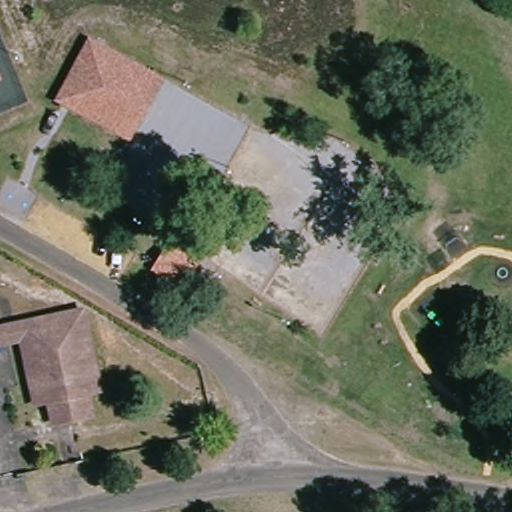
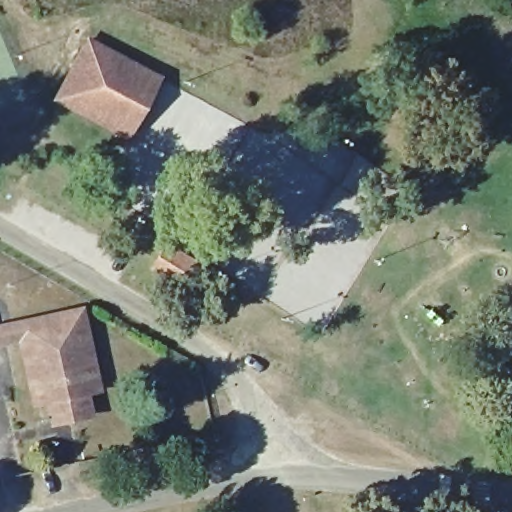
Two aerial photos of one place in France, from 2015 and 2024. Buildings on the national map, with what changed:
unchanged [(51,97),(86,36),(160,76),(129,138),(51,97)]
unchanged [(196,303),(157,276),(179,247),(217,271),(196,303)]
unchanged [(17,342),(0,345),(0,323),(80,311),(95,388),(86,391),(72,320),(26,328),(37,401),(29,402),(17,342)]
unchanged [(45,410),(43,399),(37,401),(26,328),(72,320),(86,391),(80,393),(84,416),(67,420),(47,422),(45,410)]

